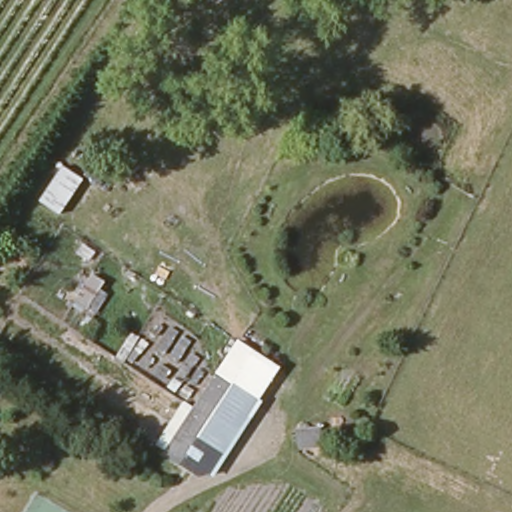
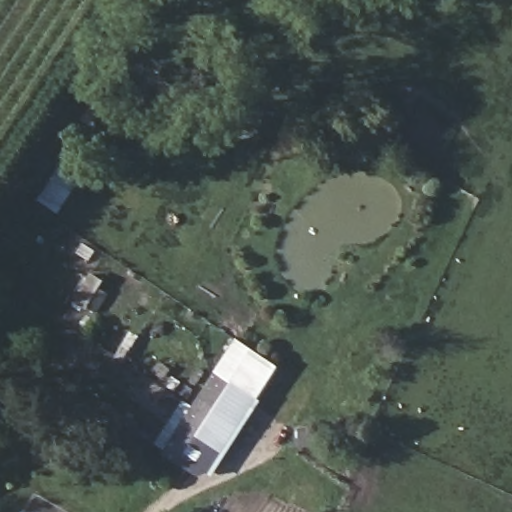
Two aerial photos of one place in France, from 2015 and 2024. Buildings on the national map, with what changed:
unchanged [(180,434),(230,354),(239,359),(193,441),(180,434)]
unchanged [(239,359),(271,379),(235,440),(212,424),(199,445),(193,441),(239,359)]

